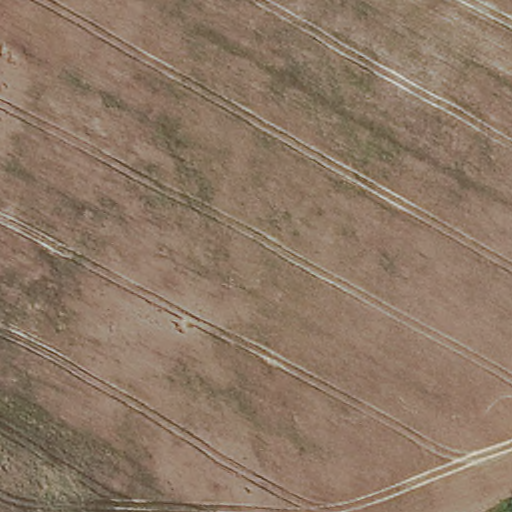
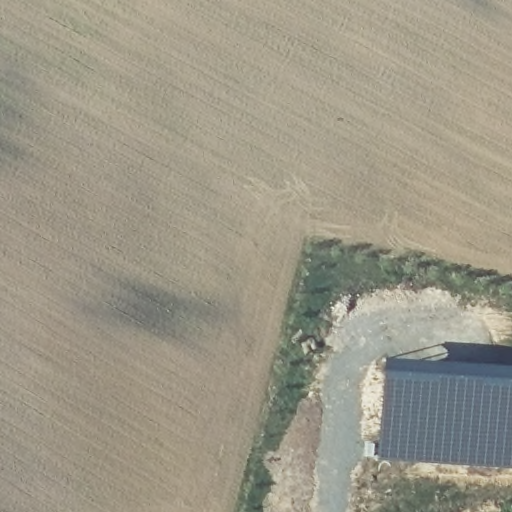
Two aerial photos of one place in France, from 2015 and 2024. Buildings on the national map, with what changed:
new [(512,366),(512,467),(379,459),(384,357),(512,366)]

